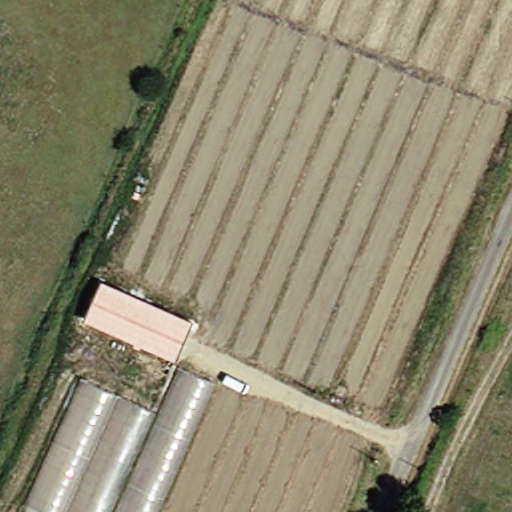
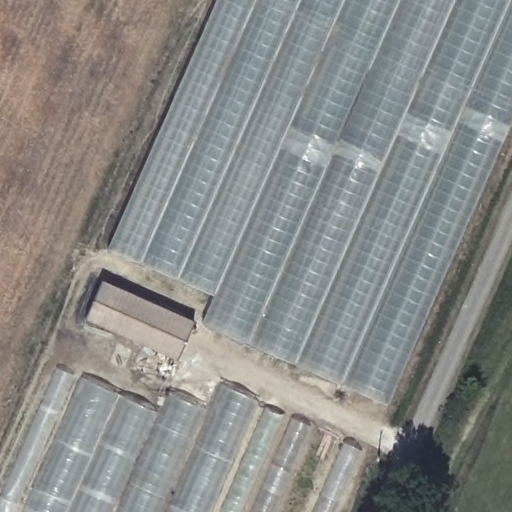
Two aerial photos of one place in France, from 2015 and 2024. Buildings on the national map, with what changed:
new [(202,324),(214,295),(109,248),(217,0),(512,0),(512,122),(388,405),(202,324)]
demolished [(109,267),(87,319),(67,310),(87,260),(109,267)]
new [(194,322),(177,361),(86,321),(103,280),(194,322)]
demolished [(131,371),(138,349),(162,359),(154,380),(131,371)]
new [(215,384),(157,512),(22,512),(82,379),(161,413),(180,369),(215,384)]
new [(223,385),(312,426),(275,512),(167,512),(223,385)]

